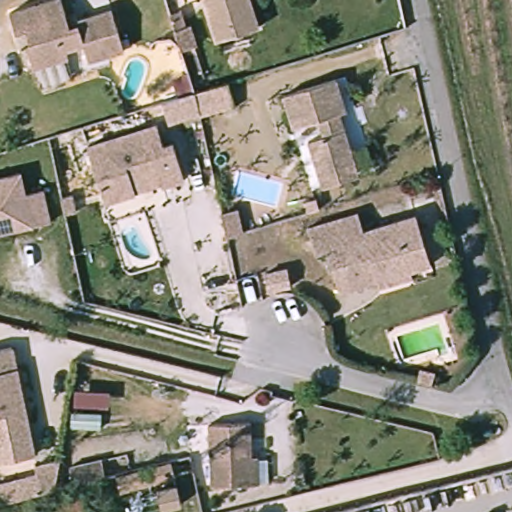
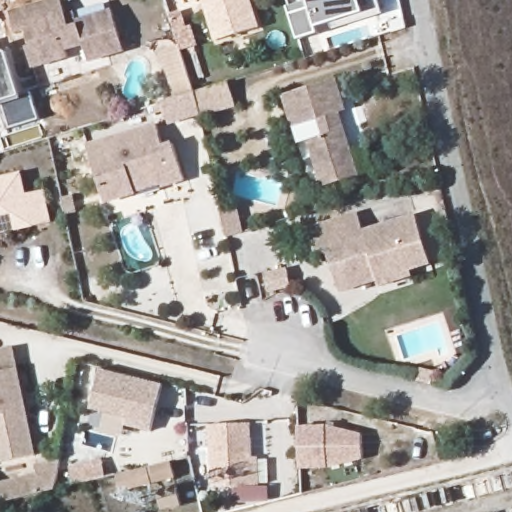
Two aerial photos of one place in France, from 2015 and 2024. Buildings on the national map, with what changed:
unchanged [(52,0),(59,21),(104,6),(118,46),(82,59),(75,43),(62,47),(61,53),(26,65),(20,46),(23,45),(18,31),(10,34),(1,15),(42,0),(52,0)]
unchanged [(196,0),(237,0),(246,28),(211,41),(196,0)]
new [(306,1),(306,0),(378,0),(383,15),(331,30),(329,24),(318,27),(320,35),(299,41),(289,6),(306,1)]
new [(176,98),(160,52),(180,45),(170,14),(183,11),(188,26),(192,25),(199,46),(182,51),(195,92),(176,98)]
new [(0,103),(0,46),(3,54),(8,51),(22,96),(32,94),(40,120),(8,130),(0,103)]
unchanged [(332,79),(341,109),(335,111),(354,172),(321,182),(305,135),(318,129),(314,117),(287,124),(278,96),(332,79)]
new [(228,82),(236,106),(169,125),(163,102),(228,82)]
demolished [(161,100),(191,90),(196,109),(166,119),(161,100)]
unchanged [(156,133),(165,156),(172,153),(184,185),(162,192),(158,181),(133,188),(136,197),(104,207),(88,153),(156,133)]
unchanged [(18,201),(36,197),(45,229),(0,238),(0,184),(13,182),(18,201)]
unchanged [(376,285),(373,277),(336,287),(324,249),(311,252),(304,225),(352,209),(359,228),(411,212),(425,260),(405,266),(408,275),(376,285)]
unchanged [(286,259),(291,278),(269,283),(265,265),(286,259)]
unchanged [(43,456),(3,465),(0,452),(0,356),(16,353),(43,456)]
new [(89,410),(99,369),(162,384),(150,433),(125,426),(128,419),(89,410)]
new [(330,424),(363,434),(364,459),(327,469),(300,469),(298,426),(330,424)]
unchanged [(248,425),(253,487),(213,489),(206,427),(248,425)]
unchanged [(60,488),(42,492),(36,467),(61,459),(60,488)]
unchanged [(81,483),(76,469),(106,459),(111,476),(93,480),(81,483)]
unchanged [(178,478),(159,484),(153,466),(176,460),(178,478)]
unchanged [(152,484),(131,490),(126,474),(146,468),(152,484)]
unchanged [(181,486),(187,505),(166,510),(160,492),(181,486)]

